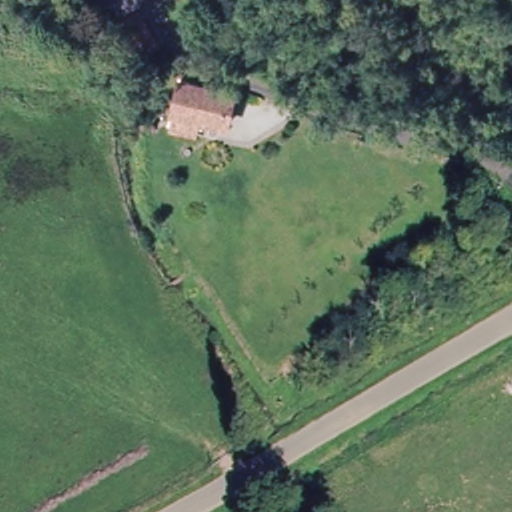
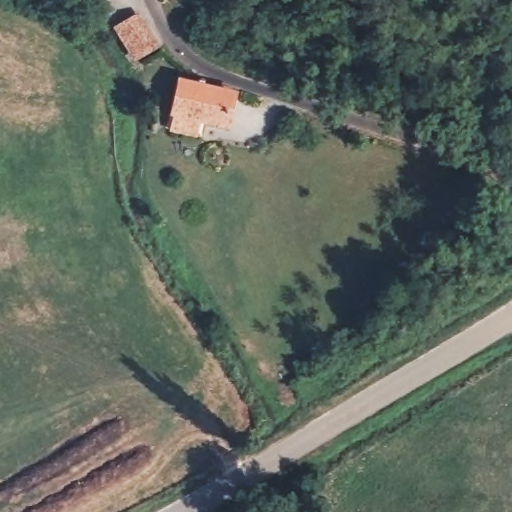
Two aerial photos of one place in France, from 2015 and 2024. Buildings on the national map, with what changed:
new [(132,61),(111,27),(139,12),(160,46),(132,61)]
unchanged [(172,134),(176,116),(179,102),(184,85),(234,97),(225,129),(205,124),(201,140),(172,134)]

